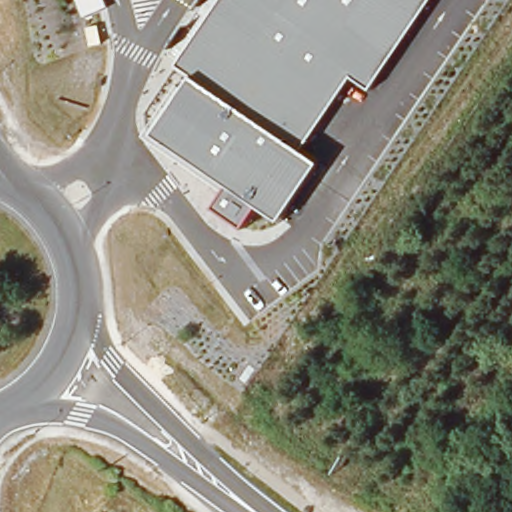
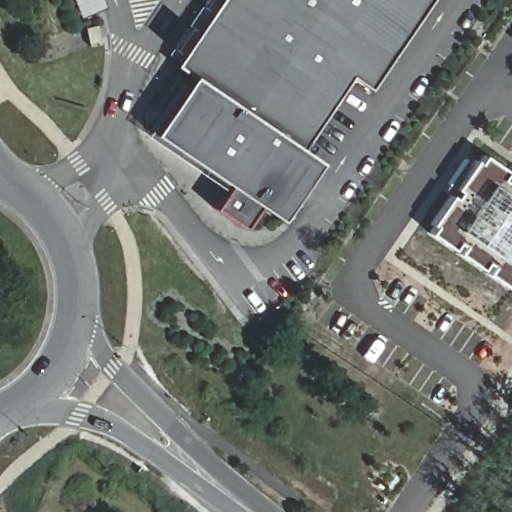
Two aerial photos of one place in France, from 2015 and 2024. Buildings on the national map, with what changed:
unchanged [(107,6),(83,16),(77,0),(104,0),(107,6)]
unchanged [(178,66),(182,61),(170,53),(206,0),(431,0),(371,88),(353,76),(306,151),(322,162),(281,220),(260,206),(246,227),(215,206),(231,185),(156,133),(195,76),(178,66)]
new [(436,226),(432,224),(452,194),(456,197),(461,192),(456,189),(477,159),(481,162),(486,155),(509,172),(505,179),(509,182),(512,178),(512,290),(487,273),(492,266),(488,263),(483,270),(459,254),(464,246),(460,243),(455,250),(431,233),(436,226)]

